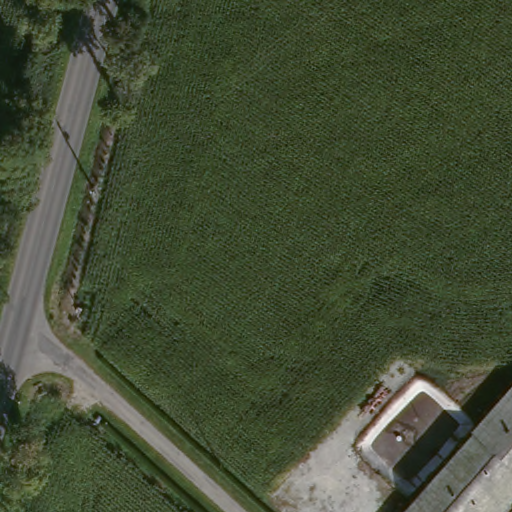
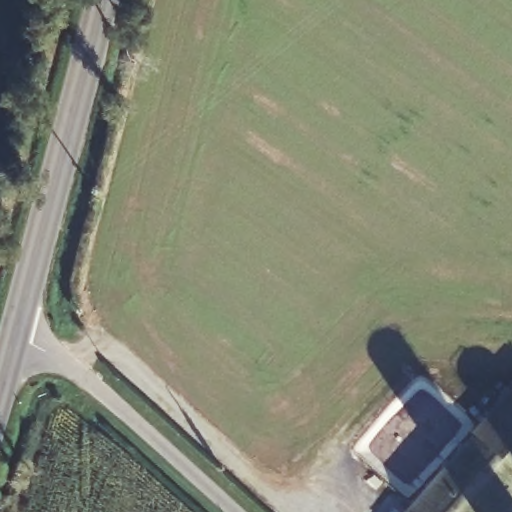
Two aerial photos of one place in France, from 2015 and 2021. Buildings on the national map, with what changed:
unchanged [(506,512),(411,512),(420,502),(483,433),(480,430),(512,395),(512,506),(506,512)]

